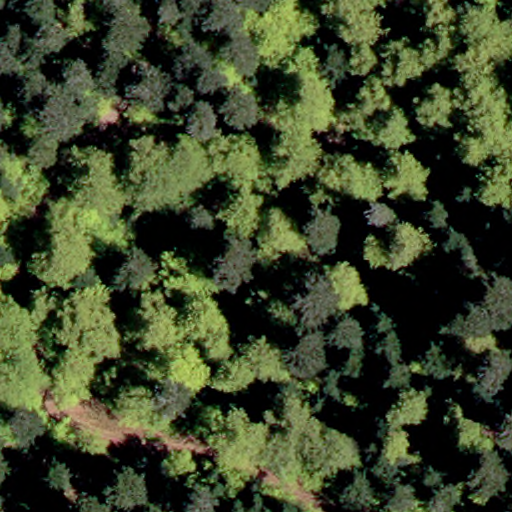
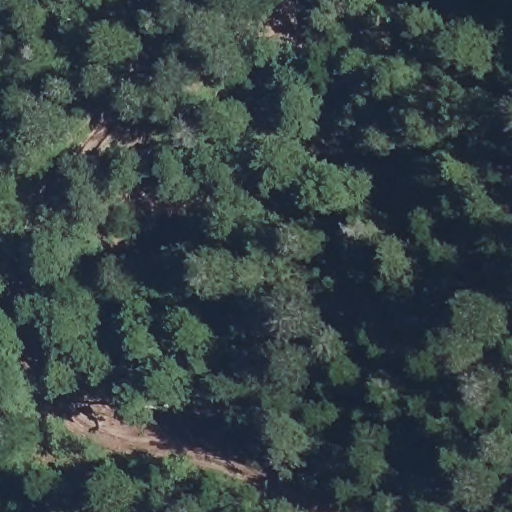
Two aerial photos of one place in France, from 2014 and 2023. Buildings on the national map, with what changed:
[]

